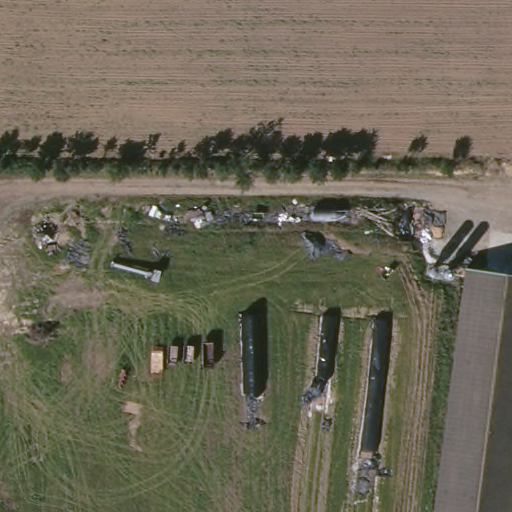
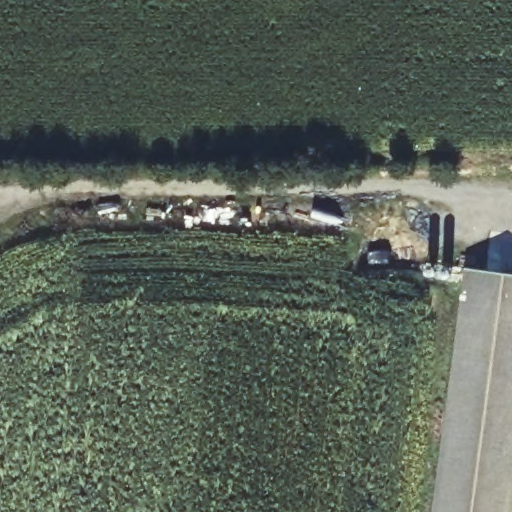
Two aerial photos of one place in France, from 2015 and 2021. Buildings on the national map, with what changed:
unchanged [(471,278),(512,283),(512,485),(507,512),(433,512),(471,278)]

